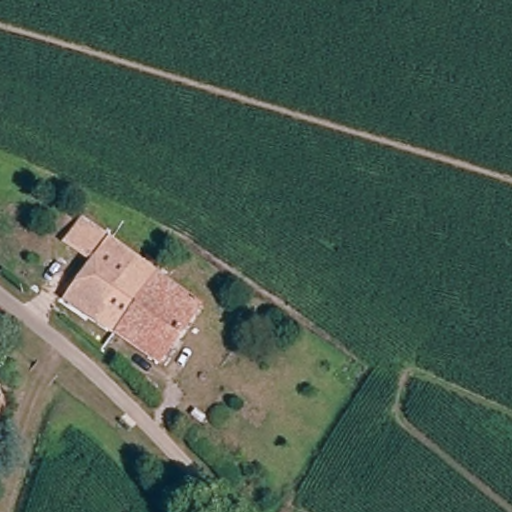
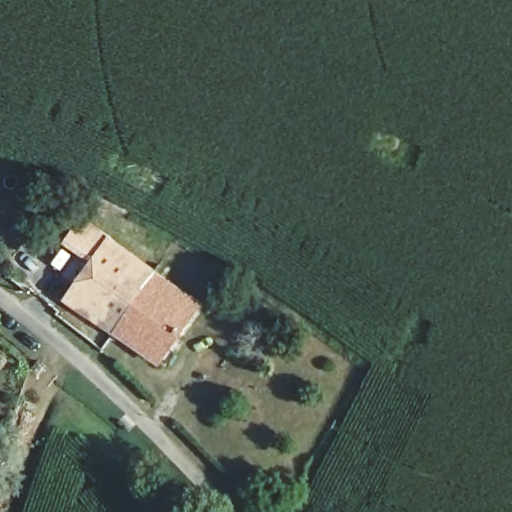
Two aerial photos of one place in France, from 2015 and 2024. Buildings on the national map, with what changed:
unchanged [(117,241),(157,277),(118,335),(72,297),(117,241)]
unchanged [(198,314),(158,368),(118,335),(157,277),(198,314)]

